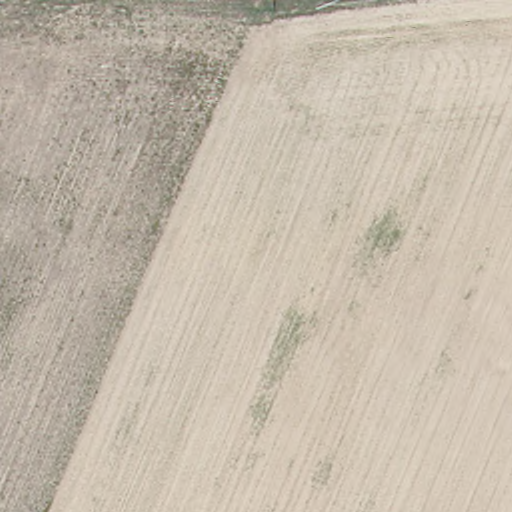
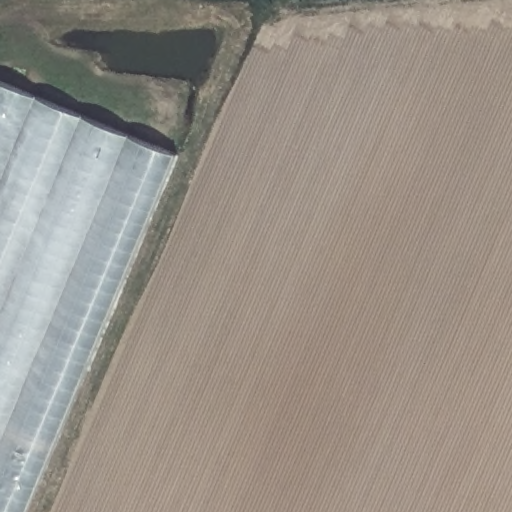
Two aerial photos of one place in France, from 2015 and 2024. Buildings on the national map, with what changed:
new [(0,512),(0,79),(179,154),(29,512),(0,512)]

